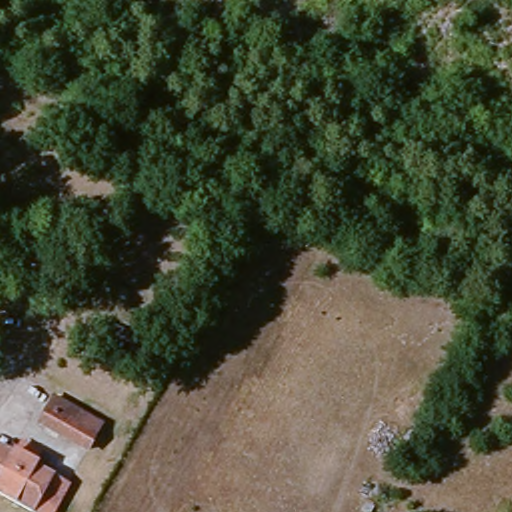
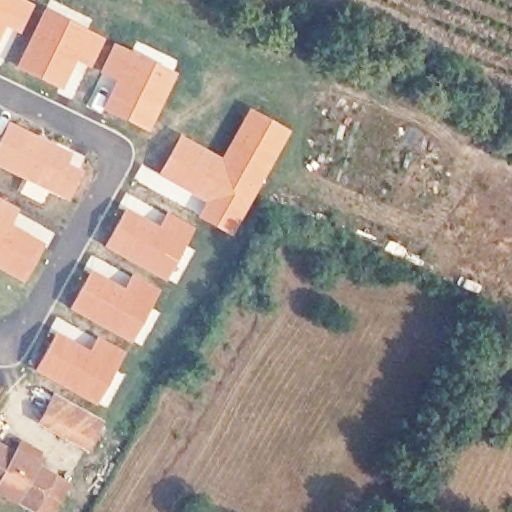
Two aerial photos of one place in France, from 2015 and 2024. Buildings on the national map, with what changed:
new [(32,4),(19,34),(6,28),(0,41),(0,0),(26,0),(32,4)]
new [(45,6),(104,38),(89,68),(76,61),(62,91),(15,68),(45,6)]
new [(113,43),(130,50),(132,48),(174,70),(145,131),(100,110),(114,81),(99,72),(113,43)]
new [(157,174),(179,134),(219,157),(247,107),(292,131),(230,238),(194,216),(195,214),(184,207),(132,179),(141,164),(157,174)]
new [(9,122),(74,153),(69,162),(80,168),(70,190),(73,192),(68,201),(47,192),(41,204),(17,192),(23,180),(0,168),(0,139),(9,122)]
new [(125,207),(120,204),(127,192),(152,207),(144,217),(156,225),(166,211),(195,228),(168,282),(103,247),(125,207)]
new [(55,233),(25,285),(0,272),(0,199),(55,233)]
new [(90,270),(84,267),(91,254),(117,270),(110,280),(122,287),(131,274),(161,291),(133,344),(67,308),(90,270)]
new [(55,331),(50,328),(56,316),(84,331),(77,341),(87,347),(96,335),(126,352),(118,370),(126,374),(107,411),(32,371),(55,331)]
unchanged [(87,450),(40,424),(54,398),(101,424),(87,450)]
unchanged [(25,512),(22,511),(0,498),(0,453),(3,455),(5,451),(26,463),(24,466),(41,476),(58,485),(43,512),(25,512)]

